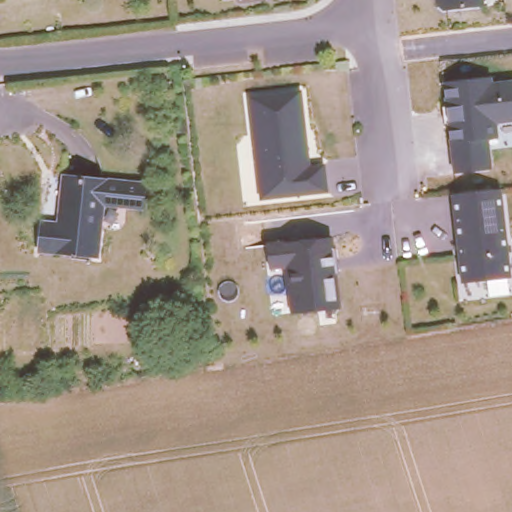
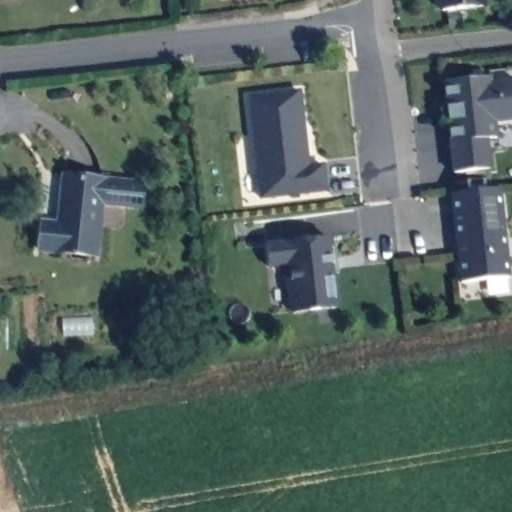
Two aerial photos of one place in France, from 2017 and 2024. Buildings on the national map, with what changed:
unchanged [(437,9),(436,0),(483,0),(484,6),(437,9)]
unchanged [(444,81),(492,76),(492,82),(512,80),(512,122),(497,124),(497,137),(489,138),(492,168),(454,173),(444,81)]
unchanged [(302,89),(310,163),(325,162),(328,192),(260,199),(248,94),(302,89)]
unchanged [(105,174),(97,250),(40,244),(43,217),(60,219),(65,170),(105,174)]
unchanged [(501,188),(511,276),(459,282),(450,193),(501,188)]
unchanged [(287,312),(282,267),(269,267),(265,240),(327,233),(337,305),(287,312)]

